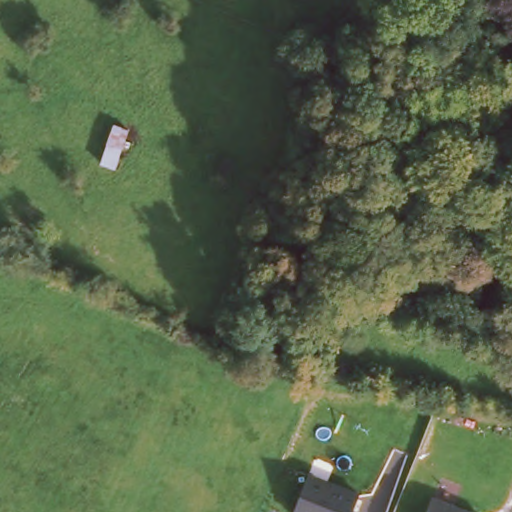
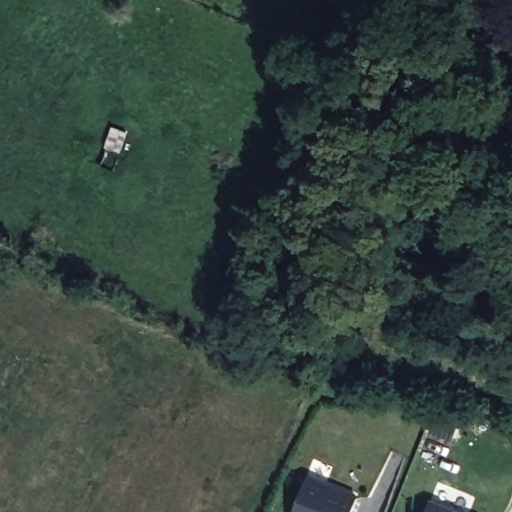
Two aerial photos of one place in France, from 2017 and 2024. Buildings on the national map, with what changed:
unchanged [(97,169),(105,128),(126,132),(115,176),(97,169)]
unchanged [(309,473),(359,493),(352,512),(296,512),(309,473)]
unchanged [(431,497),(466,512),(426,512),(431,497)]

